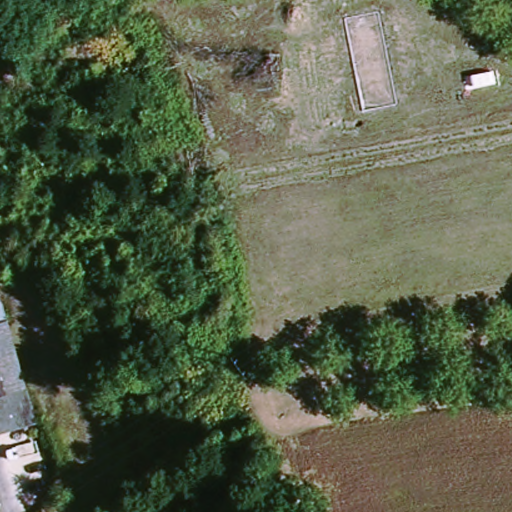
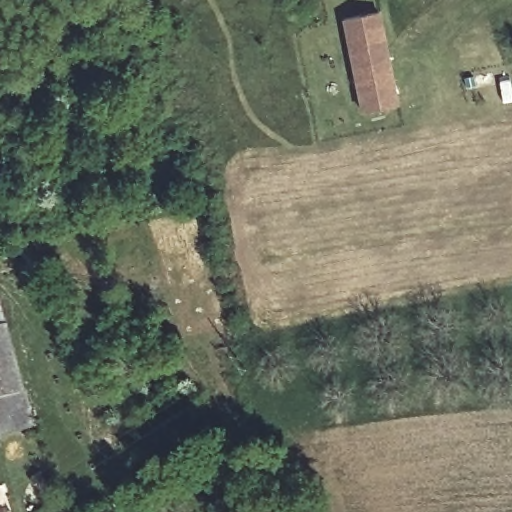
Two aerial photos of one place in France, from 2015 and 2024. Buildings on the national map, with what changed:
new [(380,12),(398,104),(360,112),(342,20),(380,12)]
unchanged [(6,310),(25,399),(0,404),(0,312),(6,310)]
unchanged [(25,399),(33,432),(0,440),(0,404),(25,399)]

